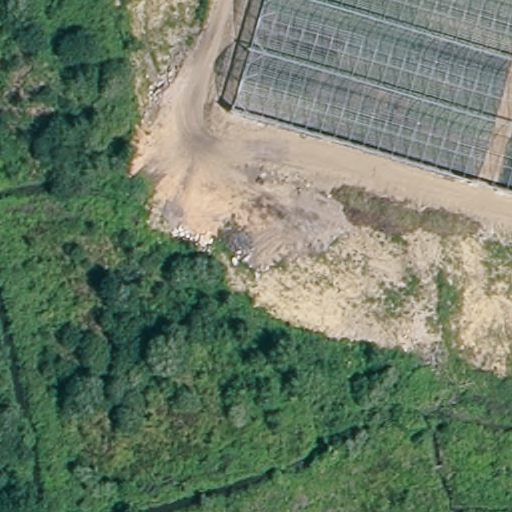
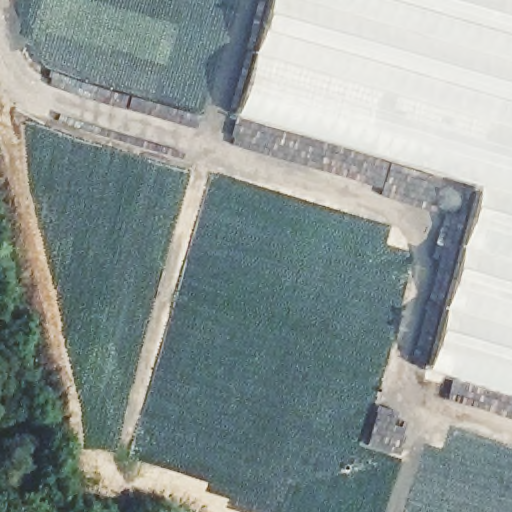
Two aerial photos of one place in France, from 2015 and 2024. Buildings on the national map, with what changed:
unchanged [(231,114),(264,0),(512,0),(512,195),(480,186),(231,114)]
new [(512,397),(423,372),(480,186),(512,195),(512,397)]

